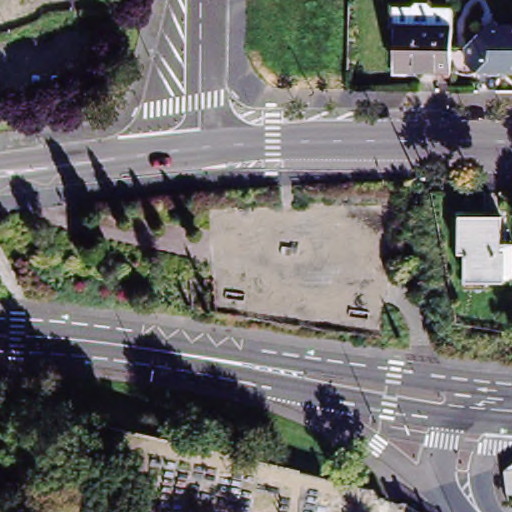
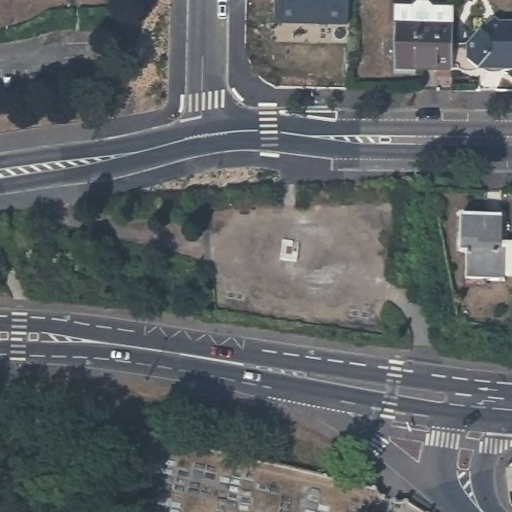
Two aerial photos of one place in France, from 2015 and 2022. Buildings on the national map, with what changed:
new [(275,0),(349,0),(348,27),(275,25),(275,0)]
unchanged [(398,27),(392,28),(392,8),(411,8),(415,3),(428,3),(432,8),(452,8),(452,28),(398,27)]
unchanged [(490,69),(482,76),(471,67),(472,48),(485,37),(499,23),(504,28),(512,28),(512,74),(502,74),(490,69)]
unchanged [(436,78),(436,71),(398,71),(398,27),(452,28),(452,71),(452,78),(436,78)]
unchanged [(501,276),(501,284),(467,283),(467,254),(462,254),(461,244),(462,217),(502,218),(502,248),(512,248),(512,272),(508,276),(501,276)]
unchanged [(511,491),(508,465),(511,463),(512,462),(512,495),(511,495),(511,491)]

